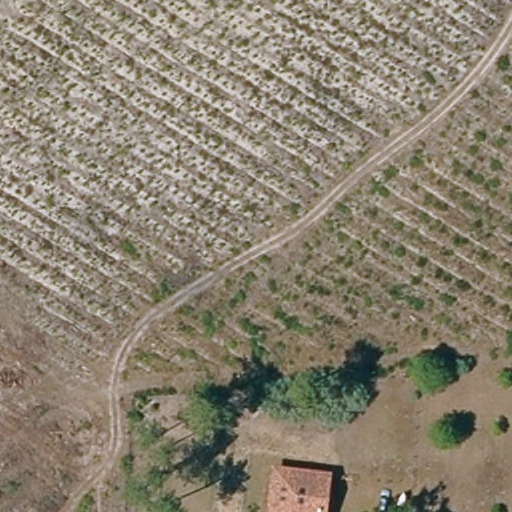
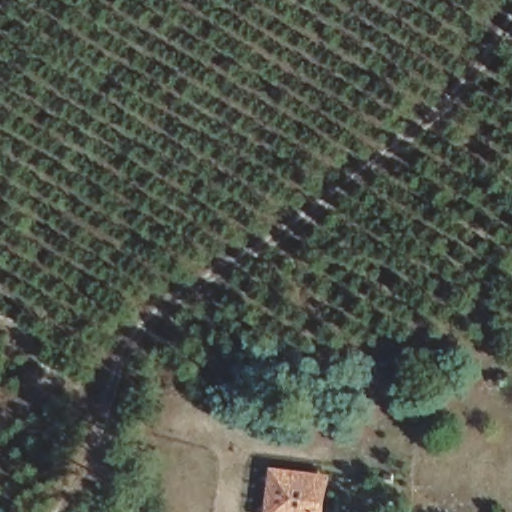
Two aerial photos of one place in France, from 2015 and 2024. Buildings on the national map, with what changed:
unchanged [(324,512),(272,512),(277,469),(328,475),(324,512)]

